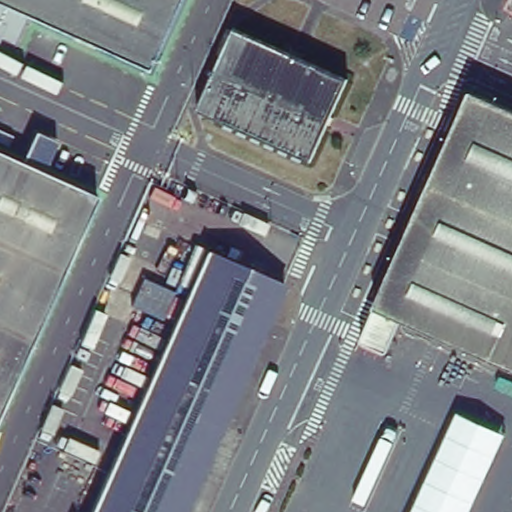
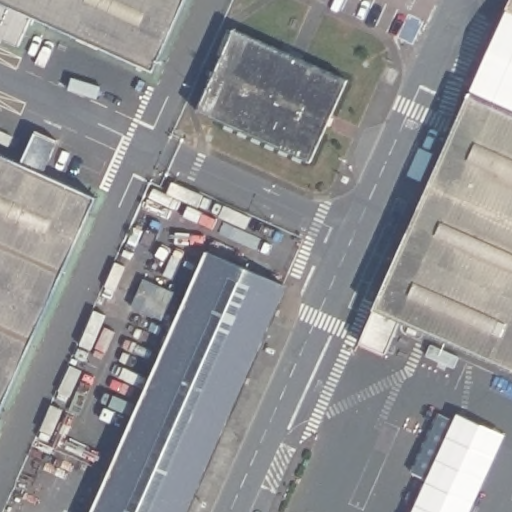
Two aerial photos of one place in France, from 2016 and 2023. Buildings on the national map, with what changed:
unchanged [(152,72),(0,2),(0,0),(185,0),(152,72)]
unchanged [(510,0),(512,0),(512,11),(506,8),(510,0)]
new [(512,109),(474,92),(506,8),(512,11),(512,109)]
unchanged [(347,80),(310,162),(196,111),(232,29),(347,80)]
unchanged [(479,388),(451,375),(452,371),(395,345),(391,353),(365,341),(379,310),(378,309),(474,92),(512,109),(512,368),(492,360),(479,388)]
unchanged [(0,400),(0,158),(87,196),(0,400)]
unchanged [(287,285),(187,512),(90,512),(206,250),(287,285)]
unchanged [(174,292),(162,320),(131,307),(143,278),(174,292)]
unchanged [(411,512),(456,412),(505,436),(470,512),(411,512)]

